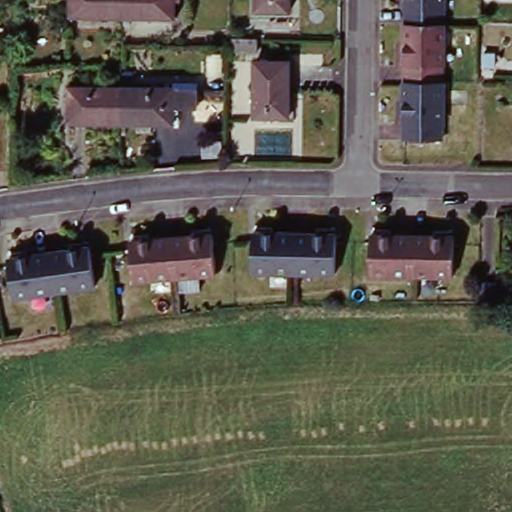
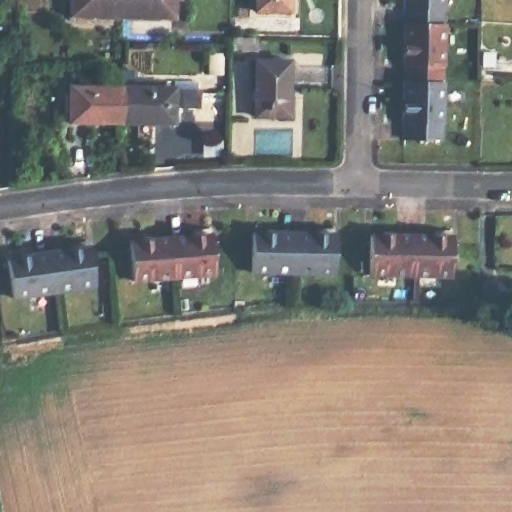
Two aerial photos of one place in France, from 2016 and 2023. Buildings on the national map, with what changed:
unchanged [(70,23),(70,0),(122,0),(122,24),(70,23)]
unchanged [(122,24),(122,0),(175,0),(175,25),(122,24)]
unchanged [(255,12),(255,0),(291,0),(291,13),(255,12)]
unchanged [(446,26),(445,70),(441,70),(441,85),(444,85),(444,127),(441,127),(441,142),(407,142),(406,127),(404,127),(405,86),(407,86),(407,70),(405,70),(405,27),(407,27),(407,11),(406,12),(406,0),(442,0),(442,26),(446,26)]
unchanged [(261,51),(260,62),(237,62),(237,51),(261,51)]
unchanged [(494,54),(494,69),(483,68),(483,54),(494,54)]
unchanged [(222,55),(222,77),(207,76),(207,55),(222,55)]
unchanged [(295,72),(294,129),(258,129),(259,71),(295,72)]
unchanged [(121,87),(121,74),(133,75),(134,87),(174,88),(174,82),(196,84),(197,108),(175,107),(174,125),(121,125),(121,87)]
unchanged [(69,124),(69,87),(121,87),(121,125),(69,124)]
unchanged [(333,239),(335,278),(252,278),(252,239),(333,239)]
unchanged [(215,240),(217,279),(137,285),(132,247),(215,240)]
unchanged [(452,242),(452,281),(371,280),(370,241),(452,242)]
unchanged [(91,252),(97,291),(17,303),(10,265),(91,252)]
unchanged [(481,305),(482,283),(497,283),(496,305),(481,305)]

